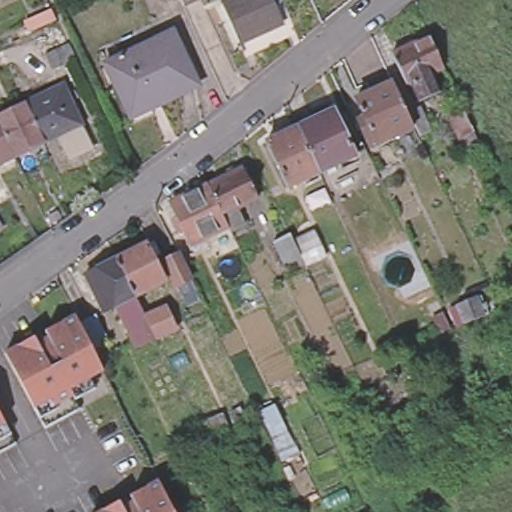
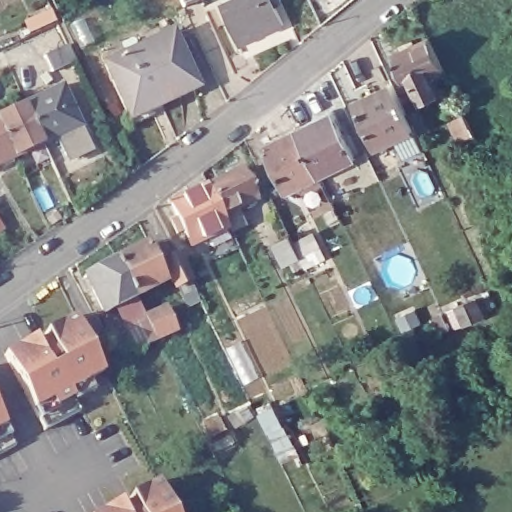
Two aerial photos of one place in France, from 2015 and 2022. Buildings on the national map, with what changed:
unchanged [(182,0),(196,0),(184,6),(182,0)]
unchanged [(275,0),(284,22),(238,42),(221,4),(230,0),(275,0)]
unchanged [(193,80),(126,110),(102,56),(168,25),(193,80)]
unchanged [(414,95),(406,75),(398,79),(384,47),(424,29),(439,61),(426,67),(434,85),(414,95)]
unchanged [(78,59),(53,70),(45,55),(70,42),(78,59)]
unchanged [(397,143),(391,129),(373,136),(368,139),(361,125),(354,112),(360,110),(351,90),(388,74),(403,105),(417,99),(427,121),(413,128),(416,134),(397,143)]
unchanged [(78,119),(40,137),(21,99),(60,80),(78,119)]
unchanged [(12,151),(0,125),(0,110),(21,99),(40,137),(12,151)]
unchanged [(329,107),(352,152),(314,170),(307,156),(294,124),(329,107)]
unchanged [(467,155),(460,140),(451,121),(465,115),(474,134),(481,149),(467,155)]
unchanged [(307,156),(314,170),(284,185),(263,138),(294,124),(307,156)]
unchanged [(0,125),(12,151),(0,157),(0,125)]
unchanged [(227,235),(224,229),(187,247),(168,205),(205,186),(239,169),(254,200),(232,210),(240,227),(227,235)]
unchanged [(0,234),(0,218),(8,229),(0,234)]
unchanged [(314,236),(319,247),(299,256),(301,258),(284,266),(274,244),(291,236),(294,245),(314,236)]
unchanged [(172,316),(177,313),(181,320),(174,322),(177,327),(156,336),(134,345),(124,328),(112,307),(101,312),(83,275),(117,259),(151,241),(170,279),(136,295),(146,318),(168,309),(172,316)]
unchanged [(199,291),(189,295),(183,285),(178,287),(167,265),(183,257),(199,291)]
unchanged [(459,318),(462,317),(459,308),(480,300),(483,308),(487,306),(491,317),(463,327),(459,318)]
unchanged [(76,396),(81,406),(47,425),(46,425),(6,350),(36,333),(39,340),(50,334),(47,328),(78,312),(82,322),(98,315),(108,339),(94,347),(105,367),(93,375),(98,386),(76,396)]
unchanged [(439,336),(433,320),(443,315),(451,332),(439,336)]
unchanged [(264,417),(276,411),(294,446),(281,453),(264,417)]
unchanged [(0,452),(0,421),(13,445),(0,452)]
unchanged [(116,503),(119,508),(130,503),(126,497),(156,482),(170,512),(100,512),(116,503)]

